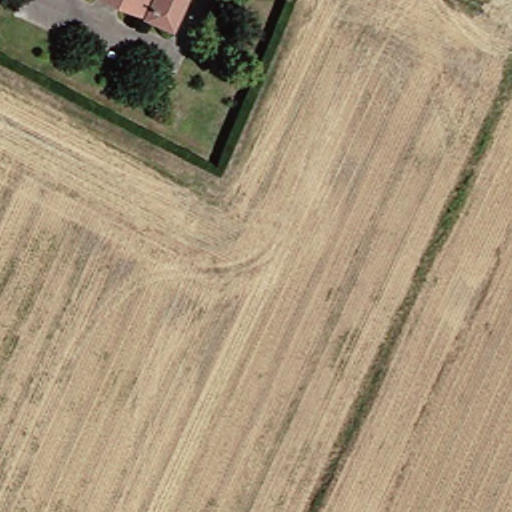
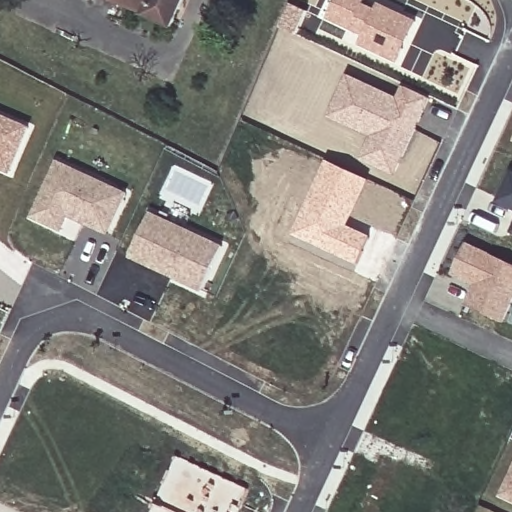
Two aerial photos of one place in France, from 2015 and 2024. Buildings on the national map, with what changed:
unchanged [(166,27),(107,0),(179,0),(166,27)]
new [(359,44),(363,35),(328,19),(337,0),(366,0),(364,3),(376,9),(379,3),(417,21),(398,63),(359,44)]
new [(279,27),(291,2),(308,11),(297,35),(279,27)]
new [(371,137),(328,116),(348,74),(398,97),(403,86),(431,99),(396,176),(361,159),(371,137)]
new [(32,127),(12,174),(0,168),(0,113),(32,127)]
new [(327,160),(370,180),(348,225),(371,236),(358,266),(293,235),(327,160)]
new [(59,163),(128,193),(109,233),(69,215),(63,230),(34,216),(59,163)]
new [(512,170),(512,208),(497,201),(512,170)]
new [(149,213),(221,247),(200,290),(128,256),(149,213)]
new [(512,229),(512,232),(511,232),(512,229)]
new [(466,244),(512,265),(512,299),(502,320),(466,304),(475,284),(452,273),(466,244)]
new [(250,489),(242,509),(235,505),(231,512),(176,512),(156,503),(179,456),(250,489)]
new [(512,500),(501,495),(512,470),(512,500)]
new [(176,512),(152,512),(156,503),(176,512)]

